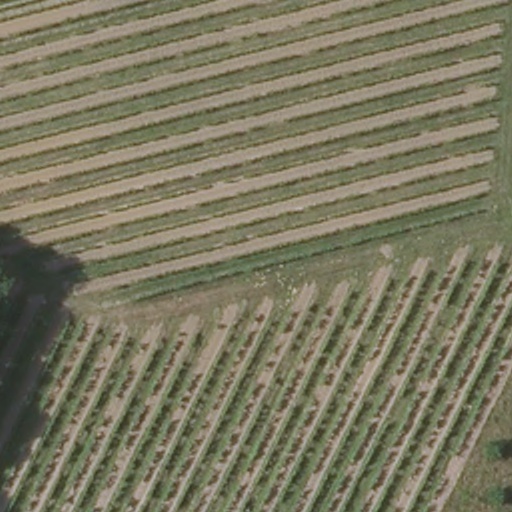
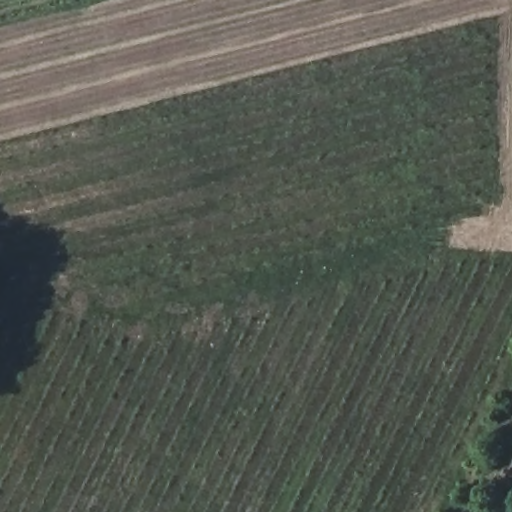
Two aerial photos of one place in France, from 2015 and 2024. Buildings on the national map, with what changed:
[]

